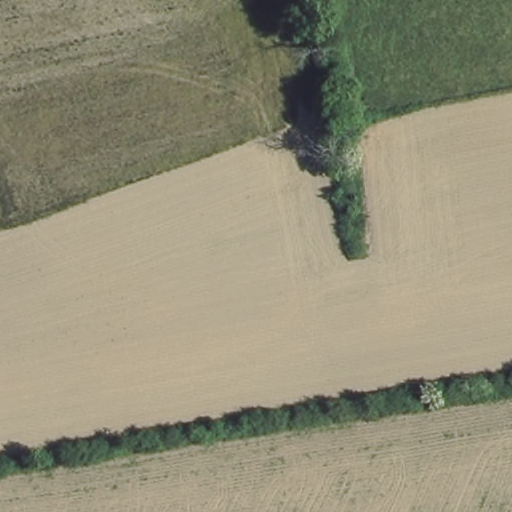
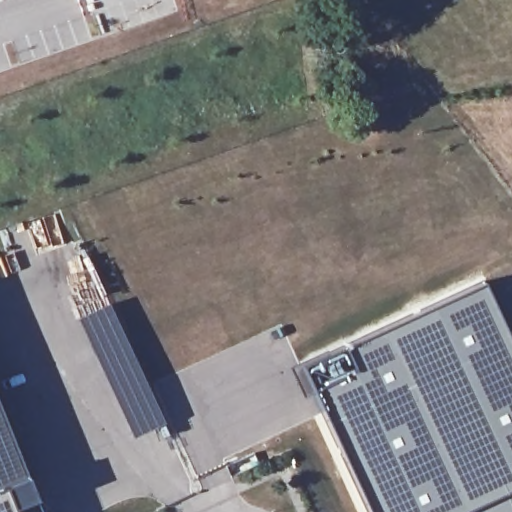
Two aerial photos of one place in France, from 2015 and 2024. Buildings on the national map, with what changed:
new [(512,388),(512,509),(506,512),(349,512),(284,371),(466,287),(512,388)]
new [(164,423),(132,438),(76,318),(108,304),(164,423)]
new [(34,475),(27,477),(35,500),(30,502),(35,512),(0,512),(0,386),(34,475)]

